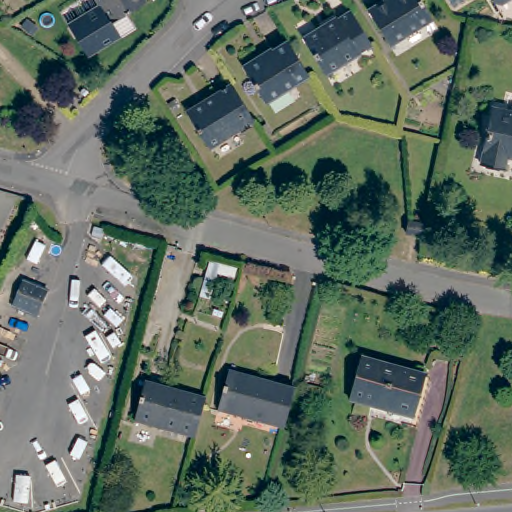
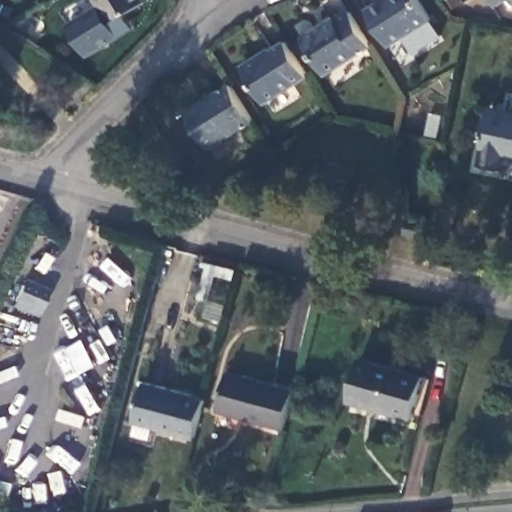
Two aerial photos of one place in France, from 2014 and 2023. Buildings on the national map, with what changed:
unchanged [(146,3),(110,25),(95,0),(144,0),(146,3)]
unchanged [(367,10),(383,0),(420,0),(432,19),(390,46),(367,10)]
unchanged [(499,4),(494,3),(493,0),(506,0),(499,4)]
unchanged [(297,39),(331,17),(333,19),(345,11),(351,21),(366,46),(320,75),(297,39)]
unchanged [(242,66),(262,54),(262,55),(286,41),(308,76),(265,103),(242,66)]
unchanged [(186,112),(230,84),(242,102),(253,120),(209,148),(186,112)]
unchanged [(512,108),(512,151),(506,150),(503,164),(481,159),(492,103),(512,108)]
unchanged [(426,224),(423,237),(406,233),(408,220),(426,224)]
unchanged [(38,318),(11,307),(23,280),(49,291),(38,318)]
unchanged [(360,359),(425,377),(413,418),(348,400),(360,359)]
unchanged [(229,366),(295,384),(284,424),(218,406),(229,366)]
unchanged [(141,376),(201,393),(190,433),(130,416),(141,376)]

